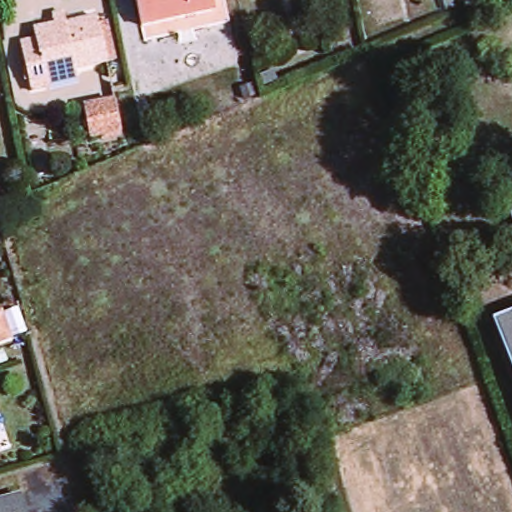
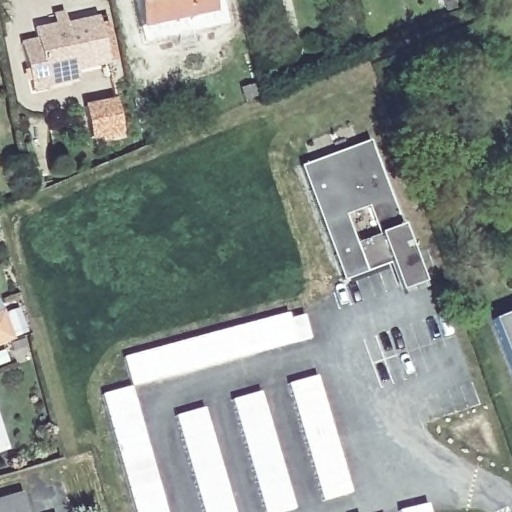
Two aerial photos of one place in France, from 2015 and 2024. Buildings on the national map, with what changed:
unchanged [(139,0),(212,0),(214,11),(144,26),(139,0)]
unchanged [(442,0),(452,0),(455,9),(445,11),(442,0)]
unchanged [(75,69),(77,78),(46,85),(47,89),(35,91),(23,41),(37,38),(35,32),(34,28),(55,23),(54,15),(63,13),(67,24),(95,18),(97,25),(107,24),(115,59),(106,59),(107,62),(75,69)]
unchanged [(265,87),(260,75),(272,69),(277,82),(265,87)]
unchanged [(242,99),(240,89),(252,86),(255,96),(242,99)]
unchanged [(92,139),(85,104),(114,99),(121,134),(92,139)]
new [(367,141),(420,283),(397,290),(387,263),(342,280),(299,167),(367,141)]
unchanged [(512,198),(512,219),(505,200),(512,198)]
unchanged [(0,344),(0,312),(2,311),(12,340),(0,344)]
unchanged [(512,315),(512,367),(495,321),(512,315)]
new [(166,512),(135,512),(102,396),(131,387),(135,378),(125,359),(140,354),(140,352),(206,335),(215,364),(137,386),(160,488),(166,512)]
new [(233,401),(261,393),(294,510),(287,512),(264,512),(233,401)]
new [(234,512),(203,512),(177,417),(205,409),(234,512)]
unchanged [(22,493),(27,512),(0,512),(0,499),(22,493)]

